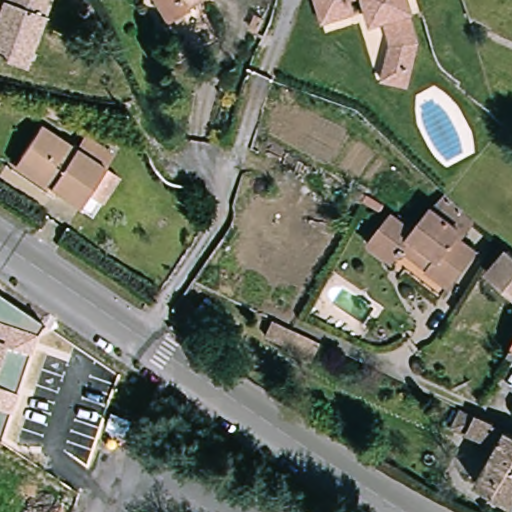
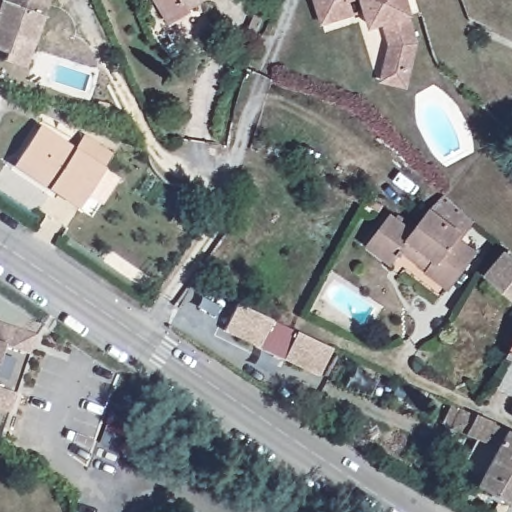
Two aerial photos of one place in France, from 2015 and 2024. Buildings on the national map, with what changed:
unchanged [(16,59),(0,53),(0,1),(11,5),(12,0),(58,0),(42,49),(34,74),(14,67),(16,59)]
unchanged [(195,8),(177,20),(165,0),(190,0),(195,8)]
unchanged [(351,1),(356,15),(326,23),(319,0),(353,0),(351,1)]
unchanged [(387,68),(392,46),(385,24),(373,28),(365,0),(417,0),(421,13),(414,15),(410,16),(419,45),(412,74),(409,89),(384,83),(387,68)]
unchanged [(101,205),(89,196),(80,210),(49,188),(16,165),(23,157),(45,124),(79,147),(88,135),(117,155),(108,168),(121,177),(101,205)]
unchanged [(395,260),(373,241),(396,215),(419,229),(436,211),(450,197),(481,227),(466,245),(479,258),(450,291),(430,272),(405,249),(395,260)]
unchanged [(494,270),(512,249),(512,285),(494,270)]
unchanged [(37,335),(30,355),(28,353),(0,436),(0,296),(44,326),(37,335)]
new [(334,349),(320,378),(286,360),(285,362),(224,331),(238,303),(272,320),(273,319),(288,326),(295,329),(318,340),(334,349)]
demolished [(288,326),(295,329),(287,348),(264,338),(273,319),(288,326)]
unchanged [(484,488),(505,449),(457,429),(457,428),(466,410),(479,417),(482,418),(483,416),(499,424),(498,427),(507,431),(512,433),(512,507),(484,488)]

